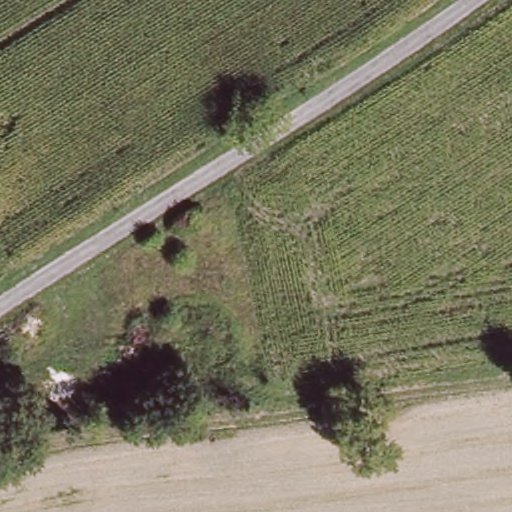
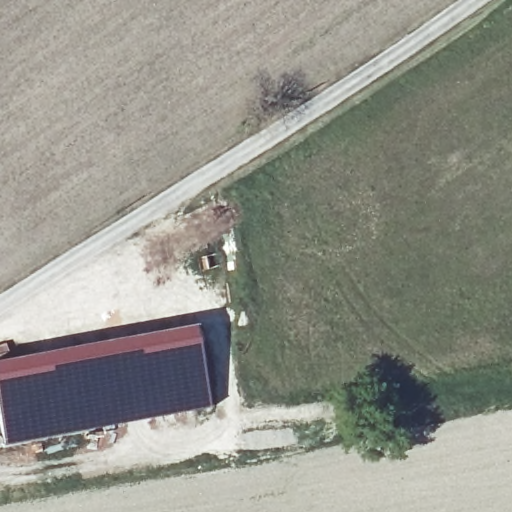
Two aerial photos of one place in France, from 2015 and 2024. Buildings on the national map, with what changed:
new [(193,329),(209,411),(2,451),(0,438),(0,366),(193,329)]

